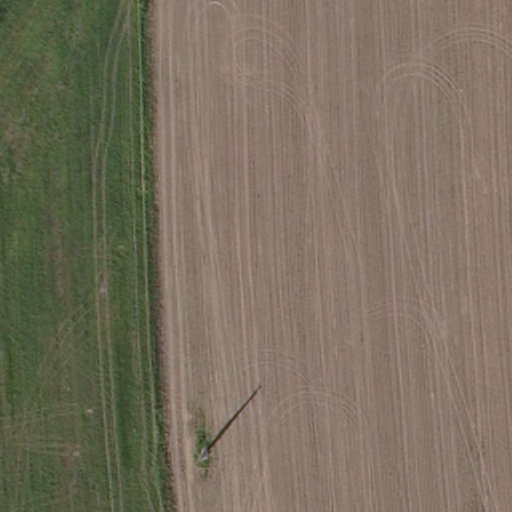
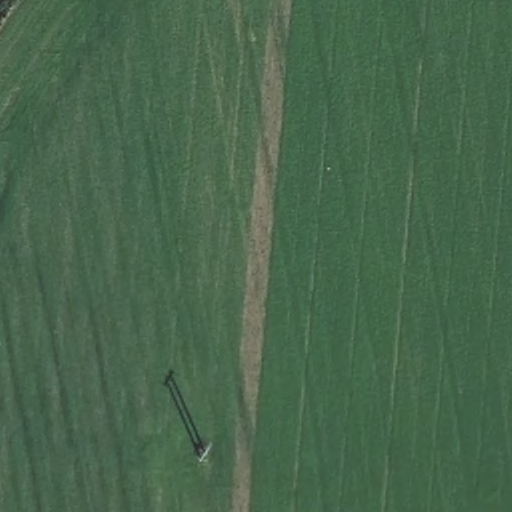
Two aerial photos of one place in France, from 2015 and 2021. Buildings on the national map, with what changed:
[]

